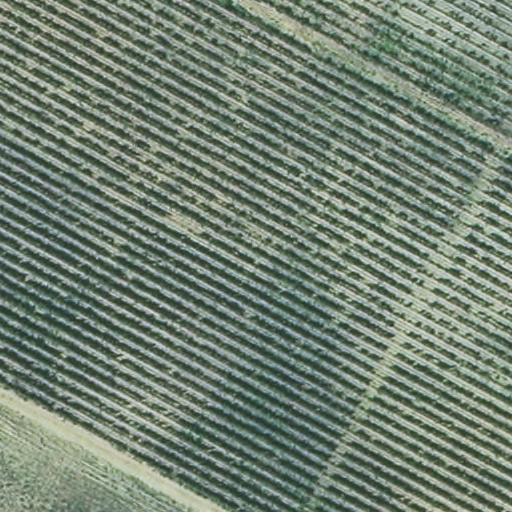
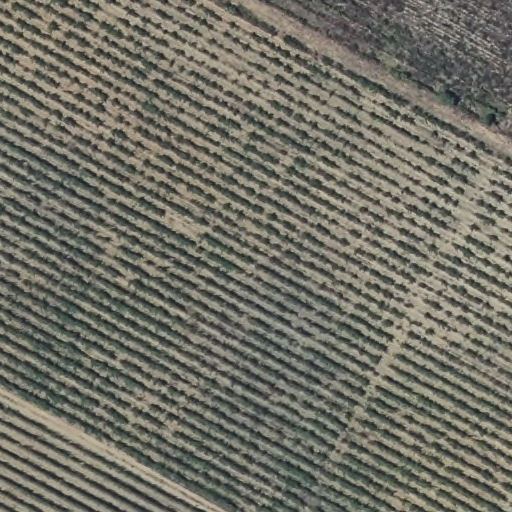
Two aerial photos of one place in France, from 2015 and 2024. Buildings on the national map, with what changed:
unchanged [(479,138),(484,128),(496,134),(489,144),(479,138)]

